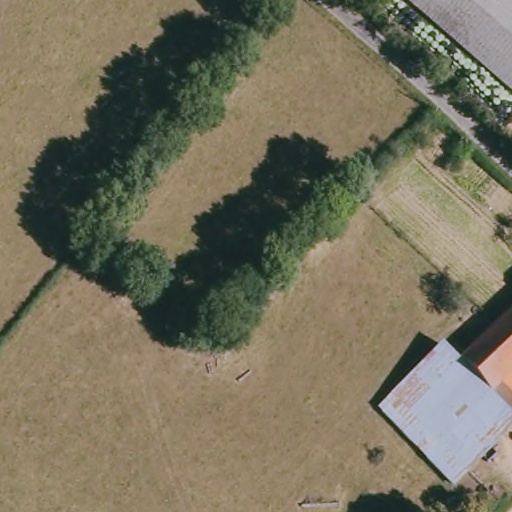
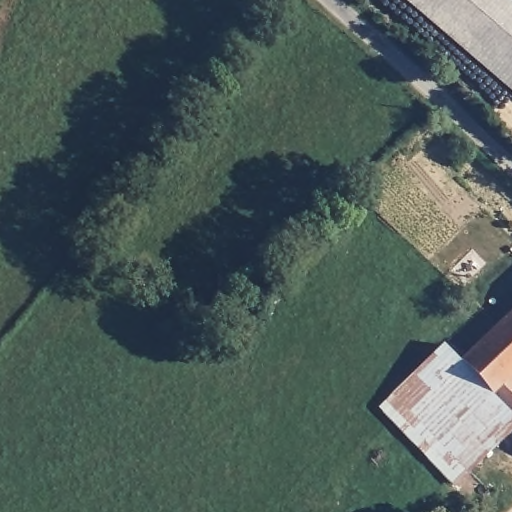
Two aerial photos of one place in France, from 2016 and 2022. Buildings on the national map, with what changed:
unchanged [(410,0),(512,0),(512,88),(410,0)]
unchanged [(511,374),(512,375),(512,415),(460,361),(509,315),(512,312),(512,373),(511,374)]
unchanged [(512,415),(512,425),(454,481),(380,405),(443,345),(460,361),(512,415)]

